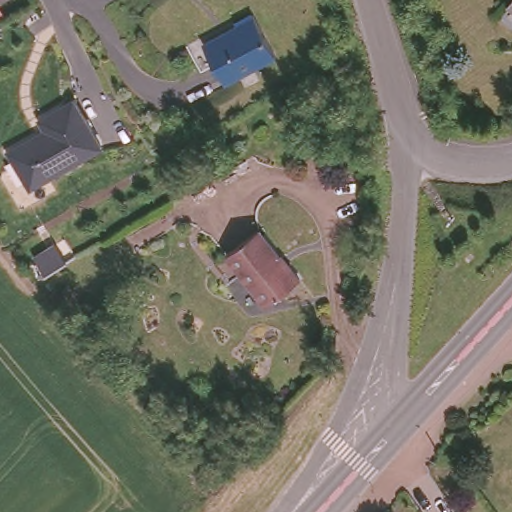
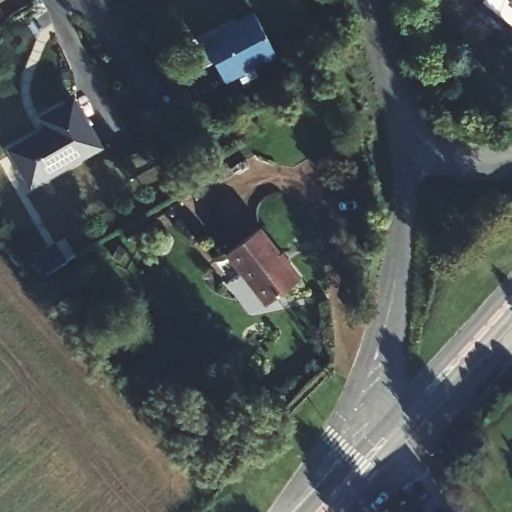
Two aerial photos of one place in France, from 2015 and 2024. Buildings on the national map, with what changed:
unchanged [(0,0),(2,0),(3,1),(0,3),(0,0)]
unchanged [(278,53),(230,81),(209,43),(240,24),(238,21),(253,12),(278,53)]
unchanged [(100,150),(31,191),(10,154),(45,133),(40,124),(71,104),(100,150)]
unchanged [(290,264),(294,260),(306,280),(265,305),(230,248),(266,226),(290,264)]
unchanged [(451,258),(440,272),(432,267),(442,254),(451,258)]

